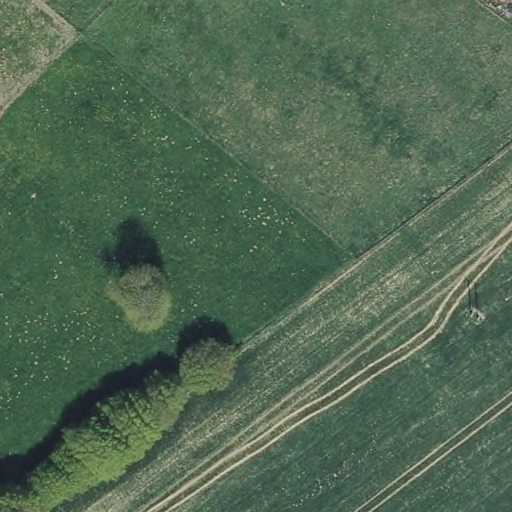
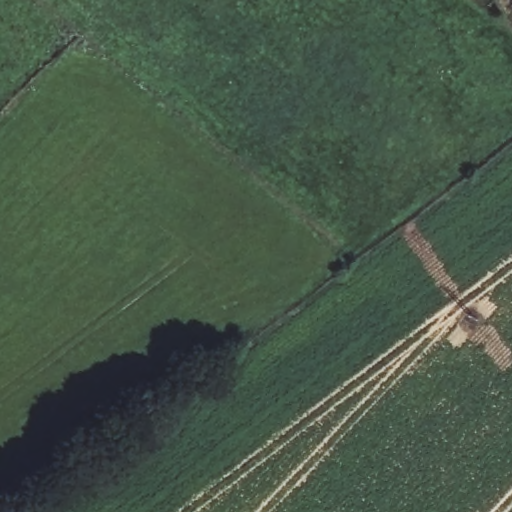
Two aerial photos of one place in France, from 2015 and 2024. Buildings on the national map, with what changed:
unchanged [(512,11),(510,9),(512,6),(512,11)]

